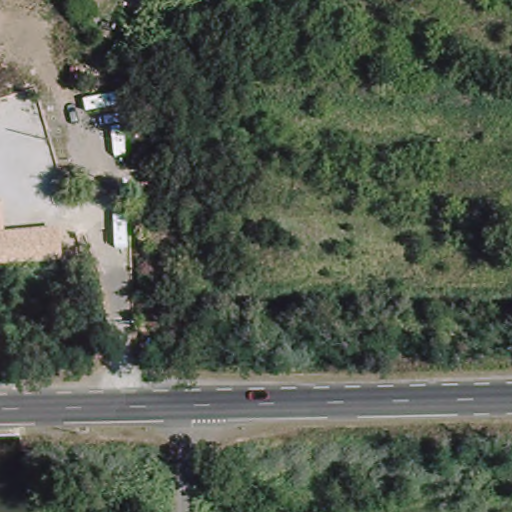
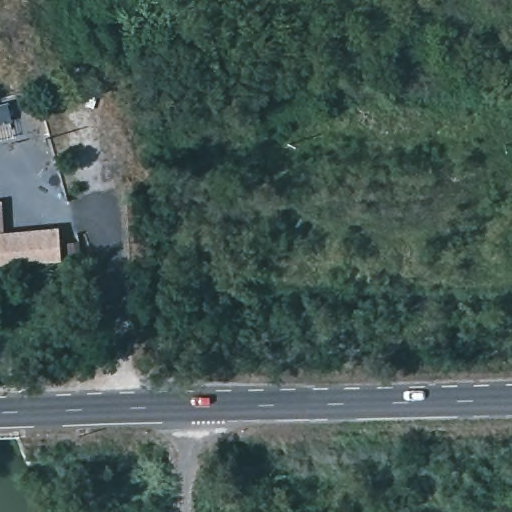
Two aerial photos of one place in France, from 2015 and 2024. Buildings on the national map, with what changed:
unchanged [(92,95),(79,98),(72,78),(85,75),(92,95)]
unchanged [(5,230),(59,227),(61,259),(0,264),(0,200),(1,199),(5,230)]

